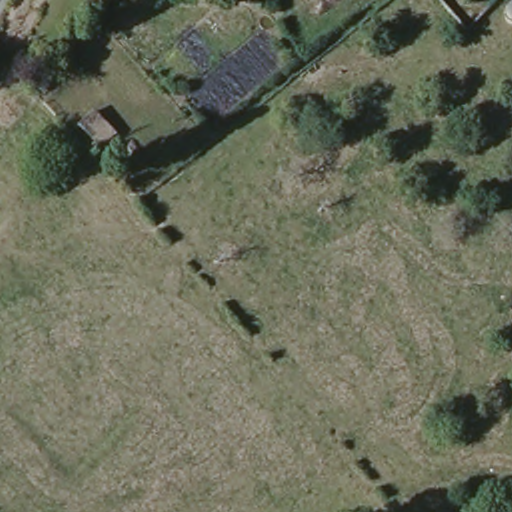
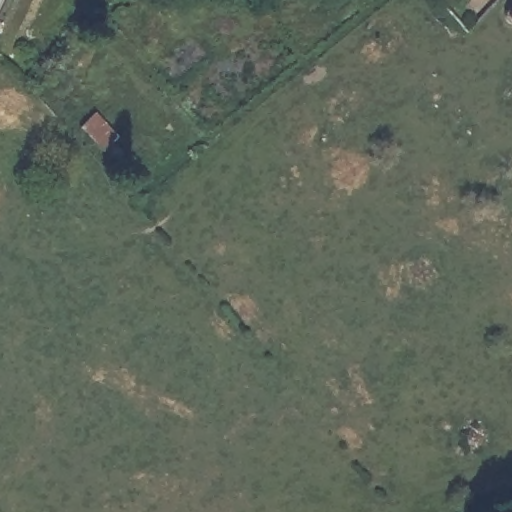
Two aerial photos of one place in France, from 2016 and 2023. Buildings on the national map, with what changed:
unchanged [(512,18),(511,18),(510,18),(510,19),(509,19),(508,19),(507,19),(506,19),(505,19),(504,19),(503,19),(503,18),(502,18),(502,17),(501,17),(500,16),(500,15),(499,15),(499,14),(498,14),(498,13),(498,12),(497,12),(497,11),(497,9),(497,8),(498,8),(498,7),(498,6),(499,5),(500,5),(500,4),(501,3),(502,3),(502,2),(503,2),(503,1),(504,1),(505,1),(506,1),(507,1),(508,1),(509,1),(510,1),(510,2),(511,2),(512,2),(512,3),(512,17),(512,18)]

